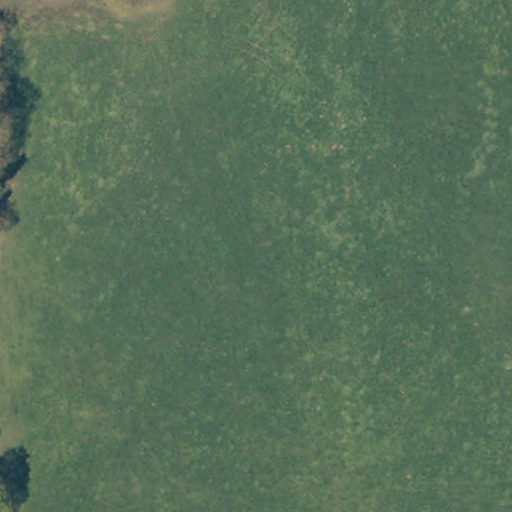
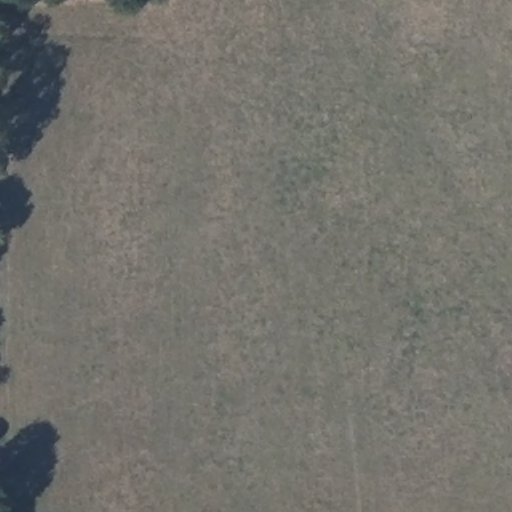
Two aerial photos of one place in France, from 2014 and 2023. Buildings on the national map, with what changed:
[]

